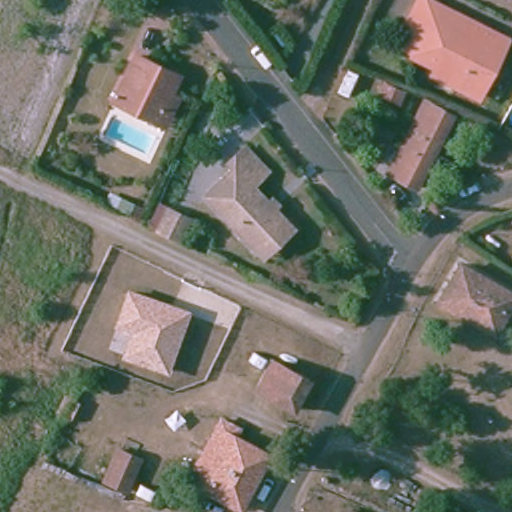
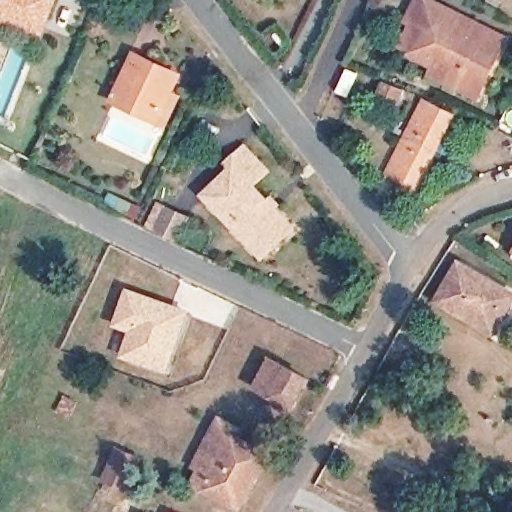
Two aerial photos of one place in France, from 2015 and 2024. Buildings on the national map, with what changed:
new [(45,38),(2,22),(0,28),(0,0),(60,0),(45,38)]
unchanged [(459,92),(436,82),(441,70),(418,60),(405,53),(416,27),(408,24),(420,0),(421,0),(508,42),(490,80),(480,102),(459,92)]
unchanged [(106,102),(120,76),(132,53),(180,78),(157,119),(154,127),(106,102)]
unchanged [(410,92),(405,106),(377,96),(384,80),(410,92)]
unchanged [(413,191),(385,176),(423,101),(451,113),(452,114),(413,191)]
unchanged [(265,260),(259,254),(210,200),(237,175),(232,168),(248,155),(270,177),(254,191),(285,229),(291,236),(265,260)]
unchanged [(135,223),(117,214),(107,209),(112,199),(122,204),(140,213),(135,223)]
unchanged [(166,216),(185,225),(174,248),(170,246),(155,239),(166,216)]
unchanged [(490,338),(435,305),(458,266),(512,301),(490,338)]
unchanged [(121,357),(130,331),(113,325),(126,287),(191,310),(169,373),(121,357)]
unchanged [(310,371),(291,411),(255,393),(275,355),(310,371)]
unchanged [(266,460),(238,512),(234,512),(191,488),(192,487),(199,475),(192,471),(217,425),(235,434),(231,441),(266,460)]
unchanged [(139,463),(125,494),(102,484),(115,453),(139,463)]

